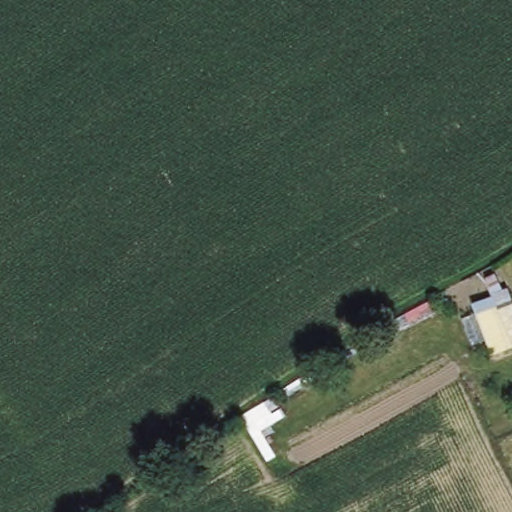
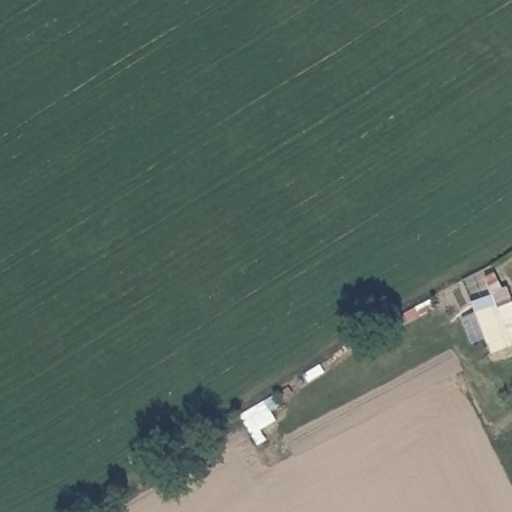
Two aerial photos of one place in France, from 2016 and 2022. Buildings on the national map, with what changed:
unchanged [(488,308),(495,304),(485,276),(494,272),(501,290),(507,287),(512,299),(512,345),(506,347),(491,353),(475,313),(488,308)]

